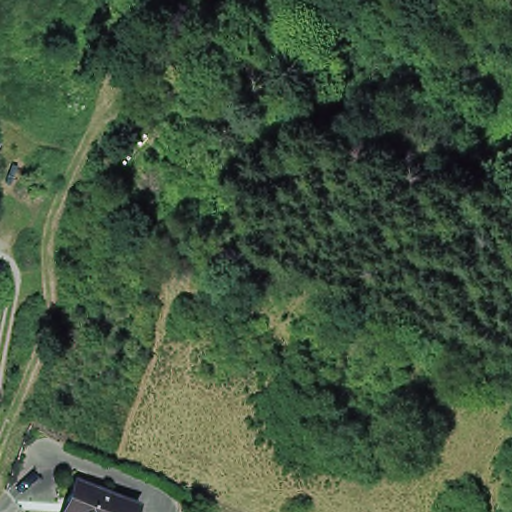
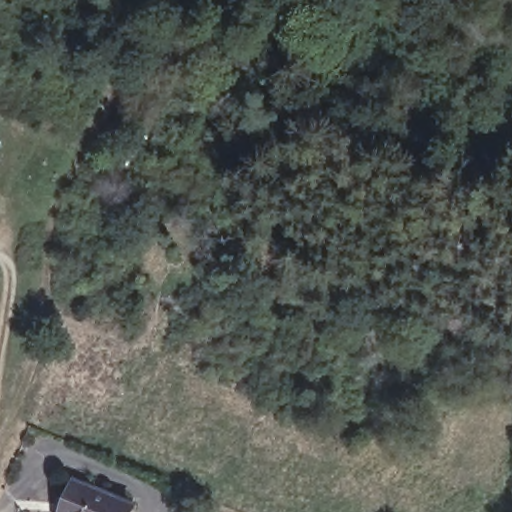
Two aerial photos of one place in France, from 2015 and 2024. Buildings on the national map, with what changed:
unchanged [(68,504),(64,501),(74,478),(132,503),(128,512),(73,512),(66,509),(68,504)]
unchanged [(73,512),(64,512),(66,509),(73,512)]

